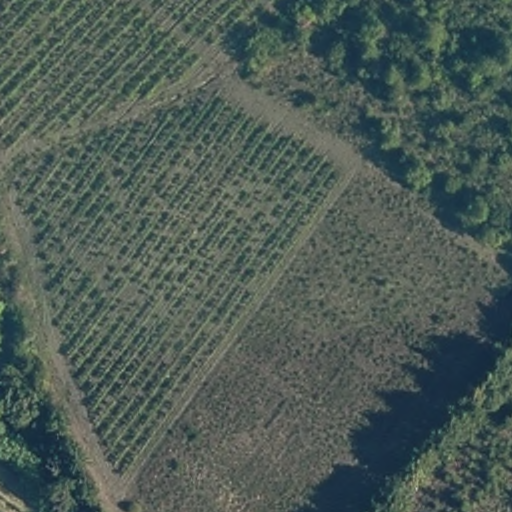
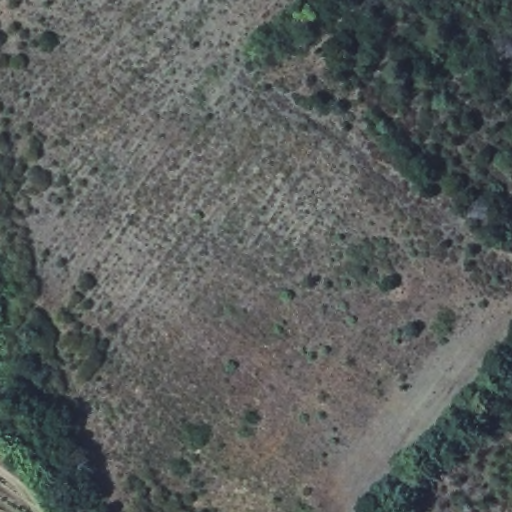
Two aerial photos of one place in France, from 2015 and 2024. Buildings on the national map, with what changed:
unchanged [(297,0),(317,10),(311,25),(286,13),(295,0),(297,0)]

